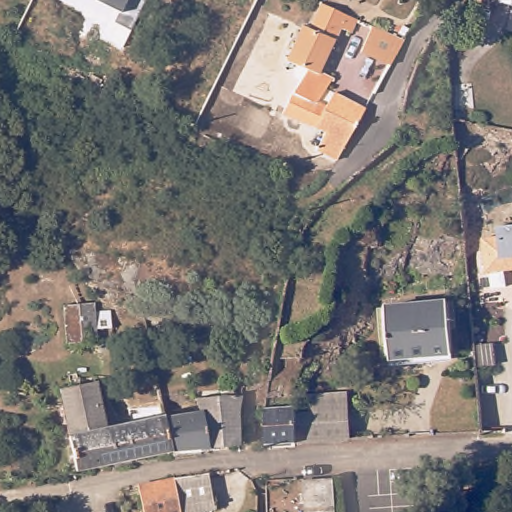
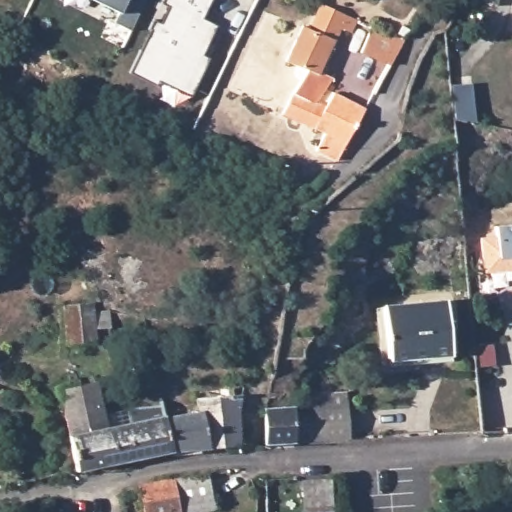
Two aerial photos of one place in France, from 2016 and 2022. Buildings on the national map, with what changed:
unchanged [(133,33),(114,24),(119,14),(92,0),(148,0),(133,33)]
new [(158,82),(156,87),(130,74),(132,69),(141,51),(144,52),(154,32),(149,30),(154,20),(161,23),(169,8),(162,4),(164,0),(213,0),(203,19),(218,26),(210,40),(203,55),(210,59),(195,89),(190,99),(158,82)]
unchanged [(499,7),(490,0),(501,0),(499,7)]
unchanged [(317,151),(326,133),(283,112),(303,80),(300,76),(297,73),(297,69),(299,64),(289,59),(306,24),(312,27),(324,3),(358,20),(352,33),(341,28),(322,72),(335,77),(319,101),(328,106),(336,92),(367,108),(337,159),(317,151)]
unchanged [(363,48),(376,23),(405,37),(391,62),(363,48)]
unchanged [(479,241),(495,237),(495,227),(512,225),(512,271),(502,273),(503,284),(483,281),(479,241)]
unchanged [(87,296),(89,307),(103,305),(105,322),(90,324),(91,336),(62,339),(58,300),(87,296)]
unchanged [(447,306),(452,359),(390,364),(385,312),(447,306)]
unchanged [(164,418),(172,452),(76,471),(51,389),(96,382),(109,426),(126,424),(124,409),(160,401),(164,418)]
unchanged [(200,412),(197,397),(226,396),(225,389),(232,389),(233,395),(241,395),(239,411),(238,446),(172,452),(164,418),(200,412)]
unchanged [(311,411),(310,400),(310,395),(344,393),(347,439),(295,442),(294,412),(311,411)]
unchanged [(294,406),(294,412),(295,442),(264,444),(264,407),(294,406)]
unchanged [(219,509),(191,512),(187,512),(180,477),(214,473),(219,509)]
unchanged [(301,480),(337,475),(342,510),(307,510),(301,480)]
unchanged [(187,512),(150,512),(143,486),(180,477),(187,512)]

